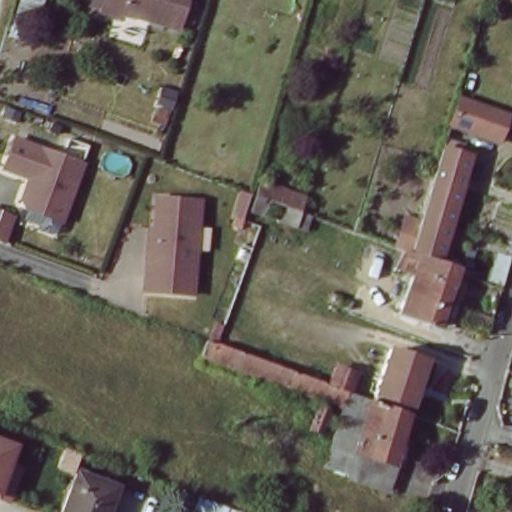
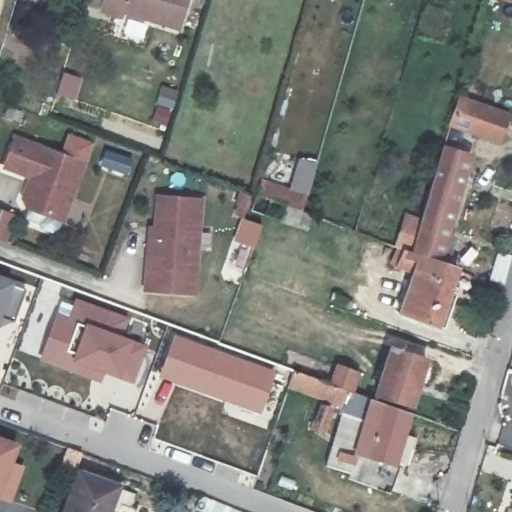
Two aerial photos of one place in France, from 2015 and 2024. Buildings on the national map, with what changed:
unchanged [(40,43),(22,37),(28,14),(25,12),(29,0),(52,0),(40,43)]
unchanged [(180,28),(126,10),(123,20),(102,13),(90,9),(93,0),(188,0),(180,28)]
unchanged [(467,7),(470,0),(484,0),(480,11),(467,7)]
unchanged [(10,93),(17,96),(20,88),(30,91),(27,100),(20,97),(17,107),(7,103),(10,93)]
unchanged [(460,101),(506,116),(498,140),(450,124),(458,100),(460,101)]
unchanged [(87,168),(70,212),(65,224),(30,211),(27,204),(30,197),(32,190),(40,183),(9,171),(20,143),(87,168)]
unchanged [(402,257),(434,153),(436,154),(453,159),(464,162),(455,193),(442,234),(432,268),(402,257)]
unchanged [(308,225),(297,220),(295,229),(247,212),(253,195),(260,171),(307,189),(300,212),(311,216),(308,225)]
unchanged [(209,205),(203,259),(200,298),(152,293),(156,257),(161,258),(162,244),(167,201),(209,205)]
demolished [(477,231),(485,201),(512,209),(512,233),(510,241),(477,231)]
new [(1,242),(0,242),(0,213),(10,217),(1,242)]
unchanged [(455,264),(460,250),(470,253),(466,266),(455,264)]
unchanged [(490,283),(498,254),(508,257),(500,286),(490,283)]
unchanged [(450,274),(432,333),(395,321),(407,280),(391,274),(398,255),(402,257),(432,268),(450,274)]
new [(24,289),(12,322),(0,318),(0,279),(11,283),(24,289)]
new [(69,317),(77,298),(128,319),(117,336),(130,341),(145,347),(130,383),(117,378),(102,373),(98,384),(37,359),(56,312),(69,317)]
new [(275,371),(258,414),(160,377),(175,335),(275,371)]
demolished [(289,389),(216,362),(222,342),(296,369),(289,389)]
unchanged [(413,406),(378,396),(392,346),(427,357),(413,406)]
unchanged [(367,418),(345,410),(289,389),(296,369),(335,383),(340,365),(362,373),(355,390),(375,398),(373,401),(411,414),(397,463),(358,452),(367,418)]
unchanged [(512,392),(512,398),(510,397),(512,392)]
unchanged [(325,431),(313,427),(321,405),(332,410),(325,431)]
unchanged [(329,463),(345,410),(367,418),(358,452),(397,463),(401,464),(393,486),(392,491),(350,476),(351,471),(329,463)]
unchanged [(11,462),(23,467),(11,502),(0,497),(0,438),(18,444),(11,462)]
unchanged [(109,508),(108,512),(62,512),(77,470),(112,483),(104,506),(109,508)]

